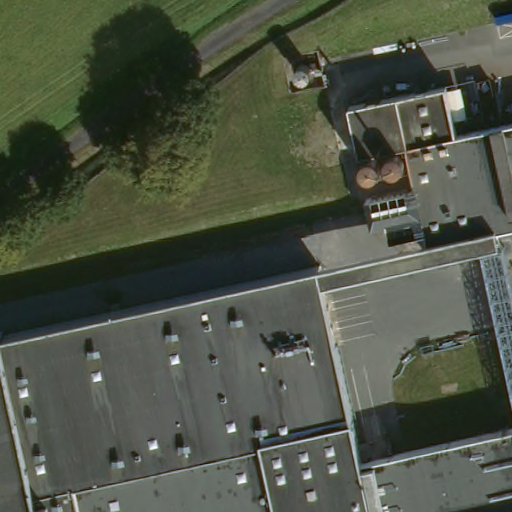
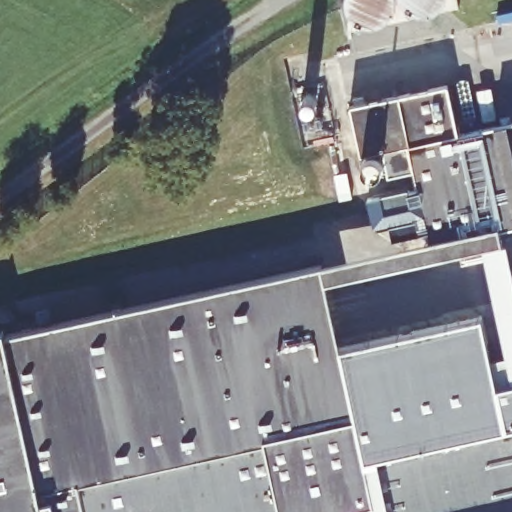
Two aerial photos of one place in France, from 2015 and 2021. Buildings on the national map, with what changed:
unchanged [(450,82),(461,132),(512,120),(512,221),(485,227),(487,246),(436,257),(431,237),(424,212),(425,212),(418,185),(417,185),(407,144),(363,155),(353,105),(450,82)]
unchanged [(417,185),(418,185),(425,212),(424,212),(375,225),(368,197),(417,185)]
new [(363,458),(339,347),(480,316),(491,357),(507,355),(482,247),(487,246),(485,227),(504,223),(512,260),(512,425),(363,458)]
unchanged [(380,250),(431,237),(436,257),(325,282),(321,263),(380,250)]
unchanged [(321,263),(325,282),(363,458),(512,425),(512,512),(312,512),(260,277),(321,263)]
unchanged [(312,512),(0,512),(0,333),(260,277),(312,512)]

